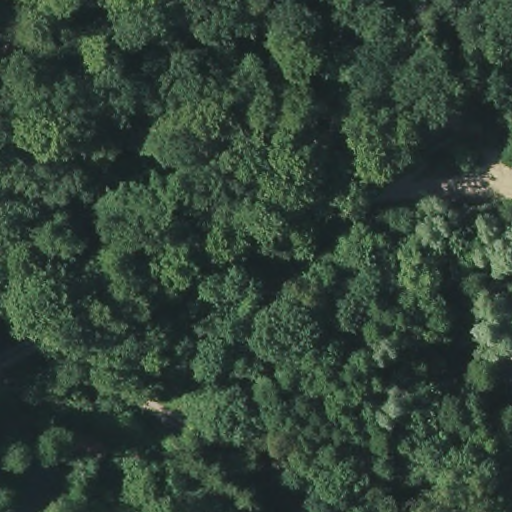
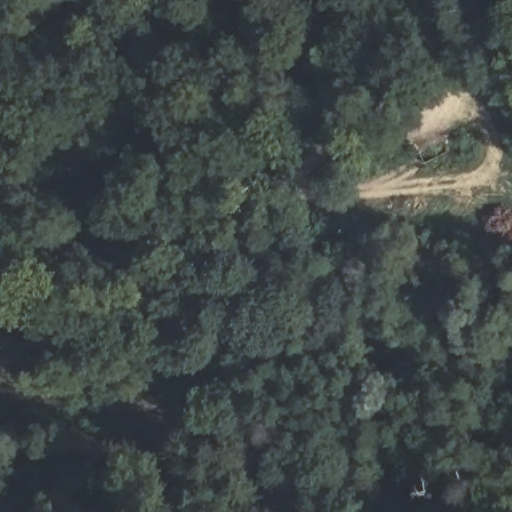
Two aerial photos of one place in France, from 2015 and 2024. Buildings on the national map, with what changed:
unchanged [(109,438),(103,451),(66,432),(74,420),(109,438)]

